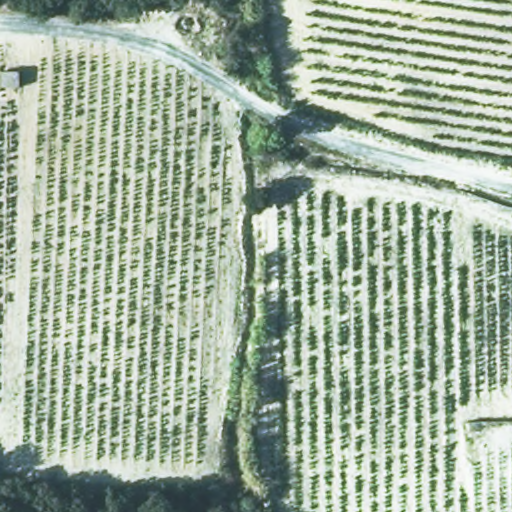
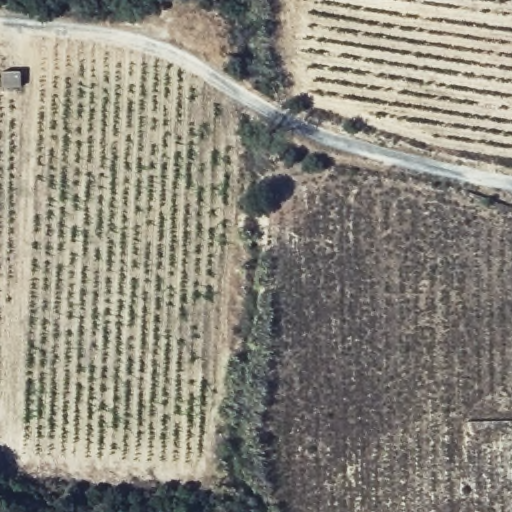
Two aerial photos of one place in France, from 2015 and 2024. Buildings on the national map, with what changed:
unchanged [(1,89),(0,69),(29,66),(32,85),(1,89)]

